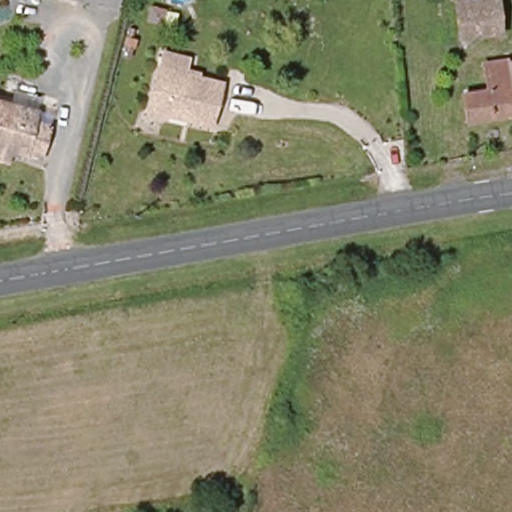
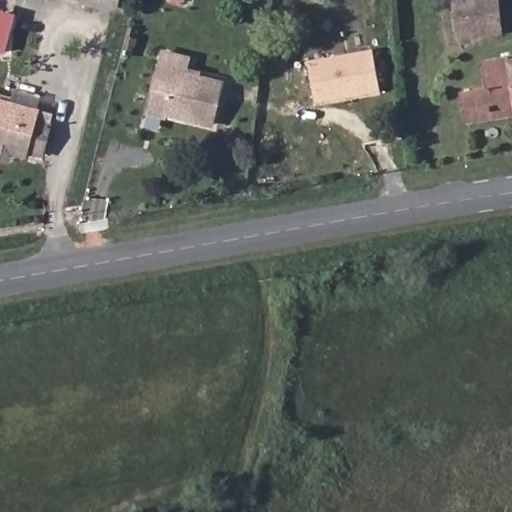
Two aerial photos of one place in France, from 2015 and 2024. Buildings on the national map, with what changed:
unchanged [(80,0),(120,0),(117,9),(80,0)]
unchanged [(456,41),(455,0),(497,0),(497,41),(456,41)]
new [(314,105),(308,63),(372,51),(378,95),(314,105)]
unchanged [(212,126),(165,115),(164,120),(147,115),(160,70),(164,52),(192,60),(187,76),(222,85),(212,126)]
unchanged [(469,99),(489,95),(487,69),(506,63),(512,62),(512,119),(473,126),(469,99)]
unchanged [(40,119),(30,151),(19,149),(17,155),(0,150),(0,97),(28,105),(26,115),(40,119)]

